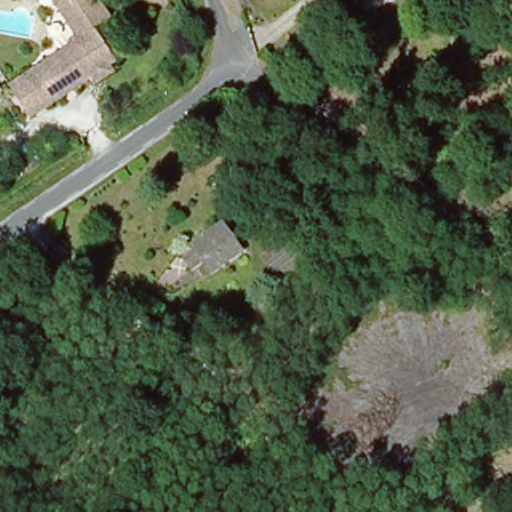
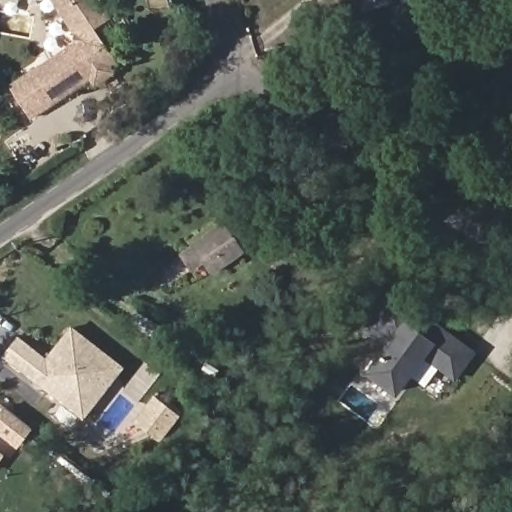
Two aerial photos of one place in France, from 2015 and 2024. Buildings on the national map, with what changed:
unchanged [(87,77),(27,116),(5,85),(69,43),(72,33),(50,0),(97,0),(107,17),(91,28),(102,44),(110,56),(103,60),(110,71),(92,84),(87,77)]
unchanged [(181,253),(224,222),(245,249),(213,272),(203,260),(194,268),(181,253)]
new [(454,382),(424,357),(395,396),(364,373),(383,348),(359,329),(394,287),(477,350),(454,382)]
unchanged [(150,339),(126,329),(136,307),(160,316),(150,339)]
new [(21,335),(47,356),(72,325),(123,365),(85,414),(7,352),(21,335)]
new [(154,395),(180,415),(160,441),(133,422),(154,395)]
new [(0,457),(0,451),(3,454),(0,457)]

